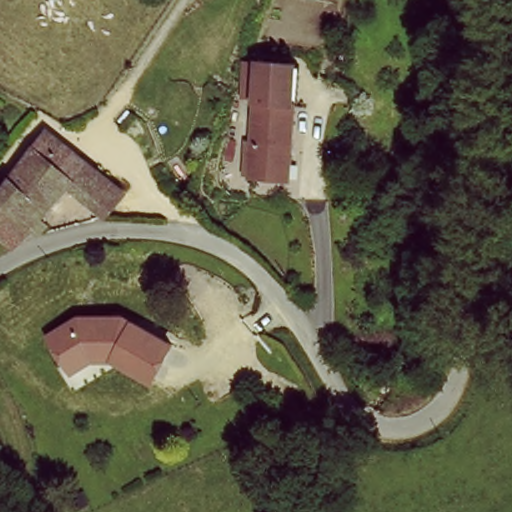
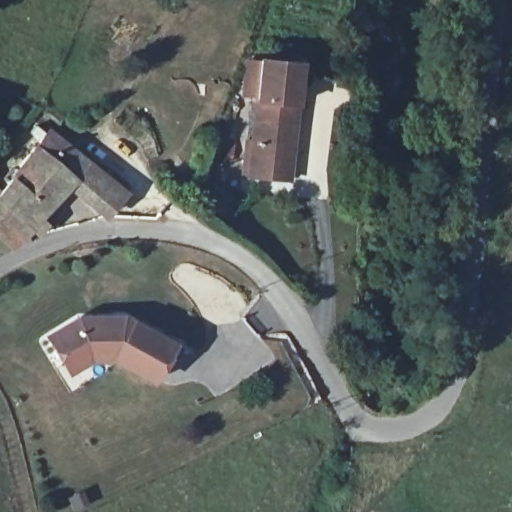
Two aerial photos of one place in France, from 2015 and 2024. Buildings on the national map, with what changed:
unchanged [(279,172),(252,170),(254,78),(295,79),(294,155),(293,175),(279,172)]
unchanged [(50,114),(74,140),(68,149),(128,200),(112,217),(75,189),(42,227),(50,235),(41,246),(34,239),(0,209),(0,169),(50,114)]
unchanged [(34,239),(18,256),(0,241),(0,209),(34,239)]
unchanged [(153,387),(109,361),(90,362),(70,375),(45,335),(81,315),(128,315),(176,345),(153,387)]

